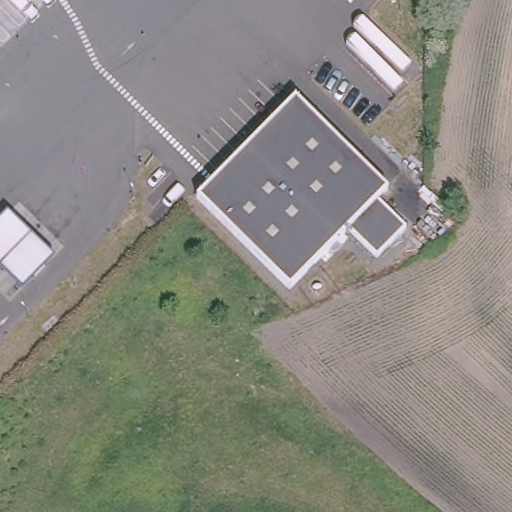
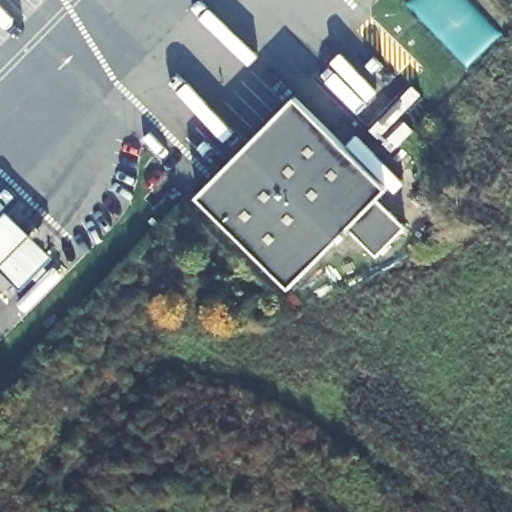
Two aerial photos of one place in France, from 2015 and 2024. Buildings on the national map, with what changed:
unchanged [(299,91),(391,184),(382,197),(407,225),(382,252),(351,225),(290,284),(198,195),(299,91)]
unchanged [(23,286),(0,262),(0,219),(7,212),(52,258),(23,286)]

